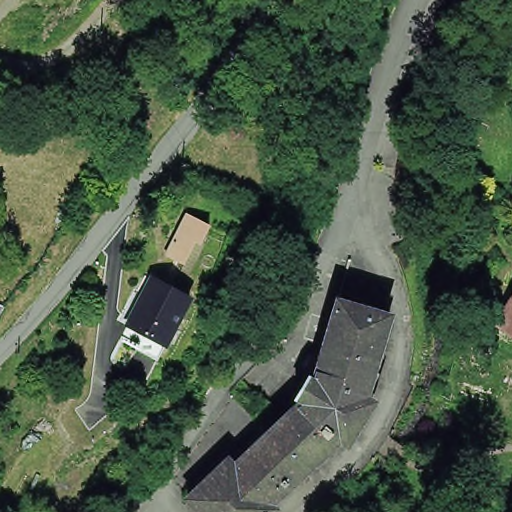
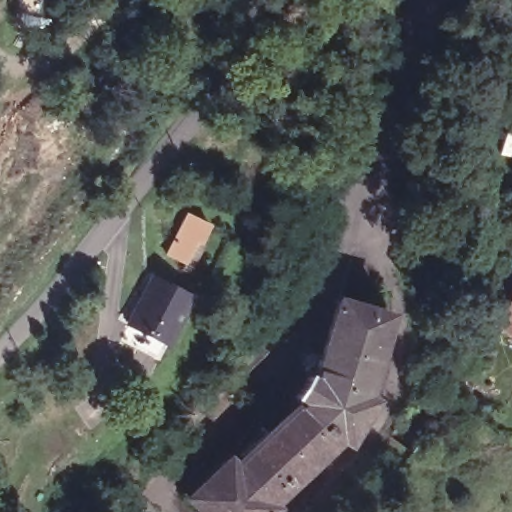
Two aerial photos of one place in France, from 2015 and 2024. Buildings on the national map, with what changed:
unchanged [(191,274),(189,272),(182,270),(185,264),(168,255),(190,215),(212,226),(203,244),(202,246),(205,248),(191,274)]
unchanged [(160,275),(198,294),(162,357),(125,340),(160,275)]
unchanged [(357,425),(353,433),(350,432),(344,430),(298,474),(277,494),(279,495),(266,512),(212,512),(214,511),(194,489),(231,451),(238,456),(306,395),(299,390),(313,365),(320,369),(341,292),(389,305),(393,305),(370,387),(376,390),(370,401),(357,425)]
unchanged [(512,300),(512,311),(507,307),(512,300)]
unchanged [(512,319),(512,331),(506,327),(512,319)]

